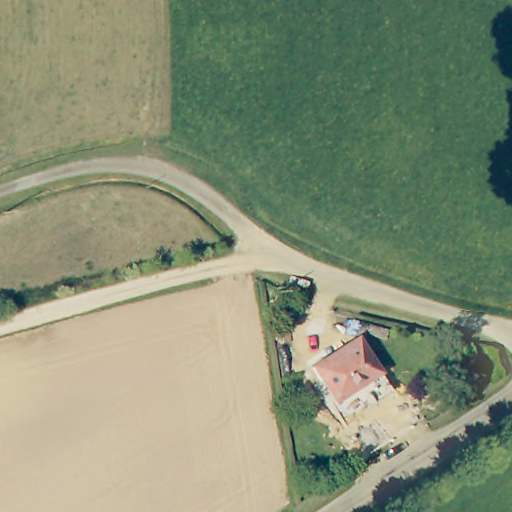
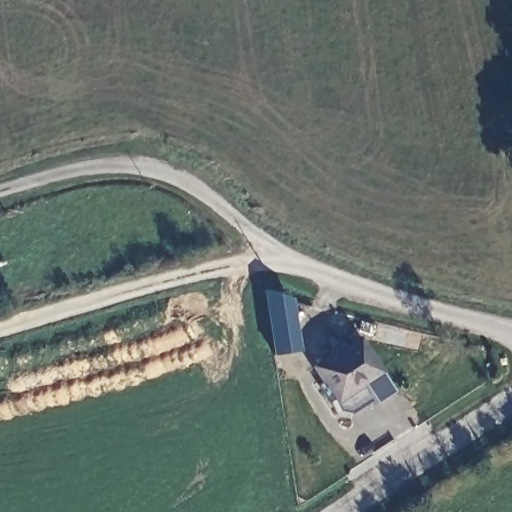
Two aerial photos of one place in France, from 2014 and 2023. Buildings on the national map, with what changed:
new [(274,356),(263,290),(292,298),(300,352),(274,356)]
demolished [(295,305),(293,314),(273,309),(275,299),(295,305)]
unchanged [(385,375),(338,405),(315,367),(362,338),(385,375)]

